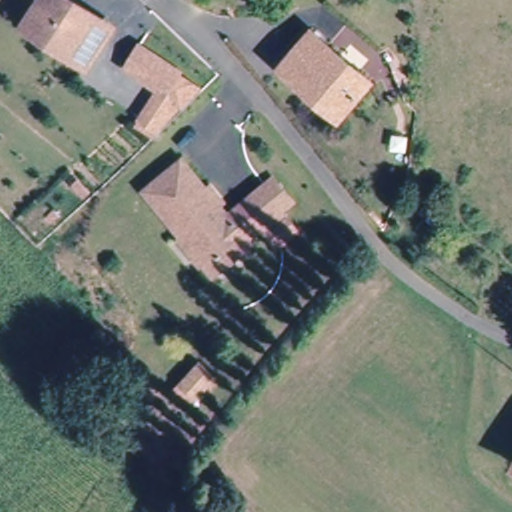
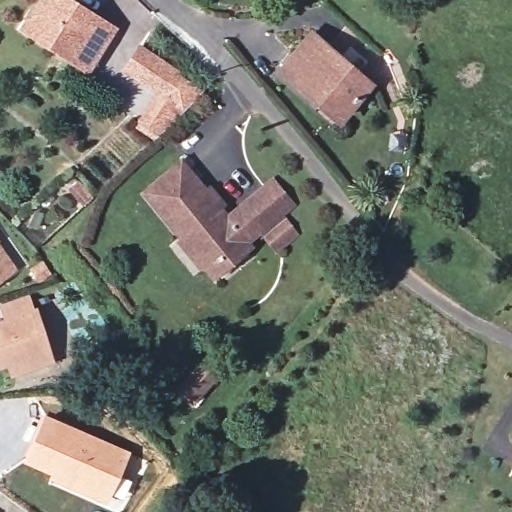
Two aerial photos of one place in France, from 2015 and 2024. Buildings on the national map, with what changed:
unchanged [(102,47),(90,38),(77,57),(27,24),(43,0),(72,0),(102,20),(115,27),(102,47)]
unchanged [(339,110),(278,63),(306,27),(366,73),(339,110)]
unchanged [(156,138),(138,126),(141,120),(159,90),(135,74),(124,67),(137,46),(148,53),(177,72),(175,76),(200,92),(161,133),(156,137),(156,138)]
unchanged [(221,277),(209,265),(143,196),(175,165),(200,192),(208,186),(220,198),(213,205),(222,217),(262,177),(286,202),(247,240),(252,246),(221,277)]
unchanged [(297,226),(283,240),(270,225),(283,211),(297,226)]
new [(16,267),(0,278),(0,244),(16,267)]
new [(45,262),(52,272),(41,280),(34,268),(45,262)]
new [(52,362),(15,372),(10,361),(0,364),(0,321),(9,318),(4,302),(30,293),(35,312),(34,313),(45,351),(50,349),(52,362)]
unchanged [(221,392),(206,380),(226,353),(241,366),(221,392)]
new [(44,413),(130,452),(106,505),(47,480),(50,473),(22,461),(44,413)]
unchanged [(512,452),(512,459),(508,457),(512,452)]

